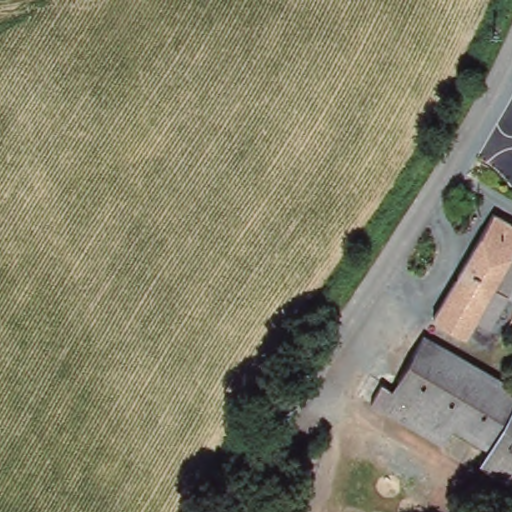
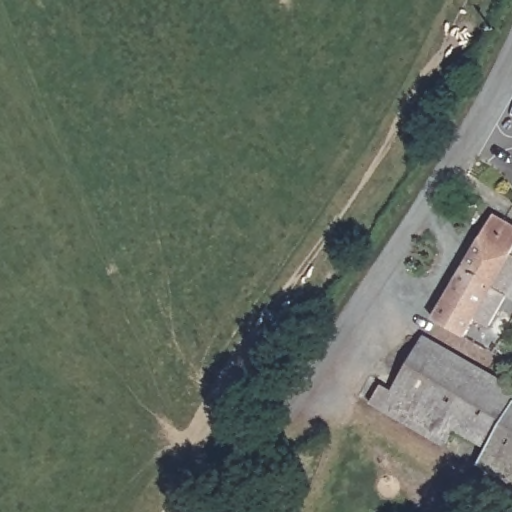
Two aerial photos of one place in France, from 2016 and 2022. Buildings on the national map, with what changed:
unchanged [(494,213),(512,223),(512,290),(493,324),(477,315),(464,335),(434,317),(494,213)]
unchanged [(512,382),(512,396),(511,398),(483,446),(451,427),(439,445),(367,403),(378,383),(389,389),(419,336),(450,353),(509,386),(512,382)]
unchanged [(512,399),(512,482),(475,461),(483,446),(511,398),(512,399)]

